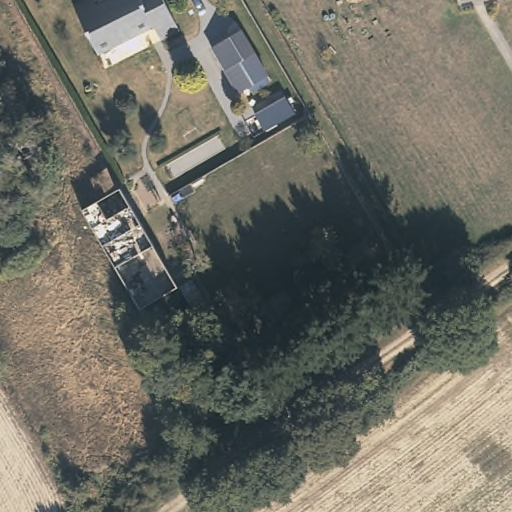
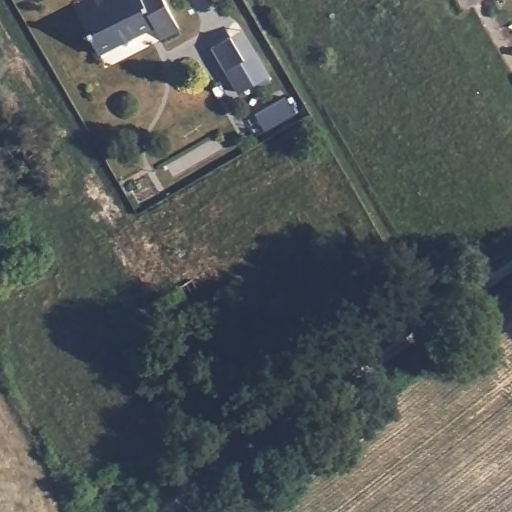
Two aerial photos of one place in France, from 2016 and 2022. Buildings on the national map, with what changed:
unchanged [(182,25),(162,37),(155,25),(99,61),(69,15),(89,1),(94,9),(108,0),(167,0),(182,25)]
unchanged [(222,59),(239,48),(249,41),(267,68),(255,76),(239,86),(222,59)]
unchanged [(176,284),(140,306),(78,209),(113,187),(113,188),(176,284)]

